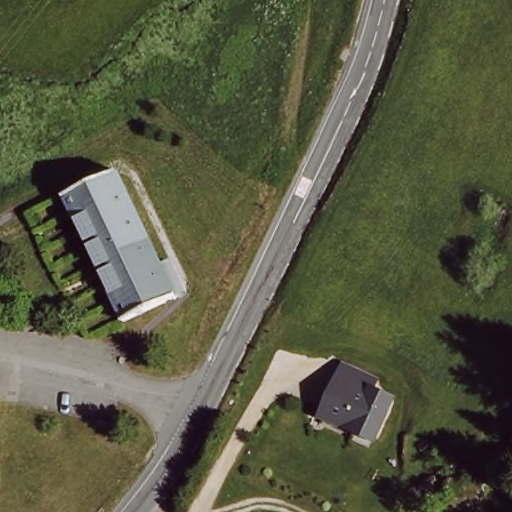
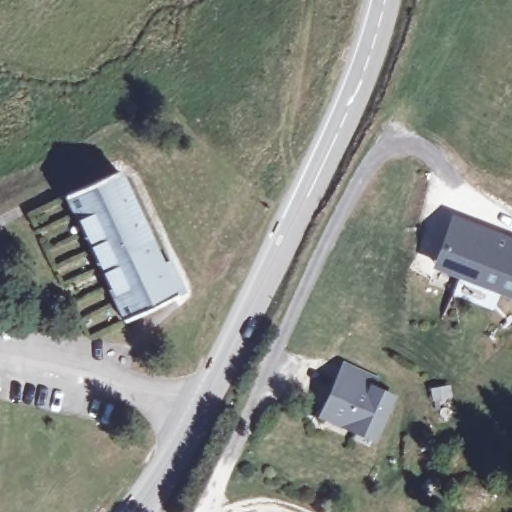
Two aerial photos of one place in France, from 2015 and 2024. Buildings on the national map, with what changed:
unchanged [(120,166),(179,292),(133,314),(74,188),(120,166)]
unchanged [(133,314),(126,317),(67,191),(74,188),(133,314)]
new [(512,238),(512,300),(431,269),(452,215),(512,238)]
unchanged [(378,381),(374,391),(393,398),(375,438),(355,430),(358,425),(327,411),(348,367),(378,381)]

